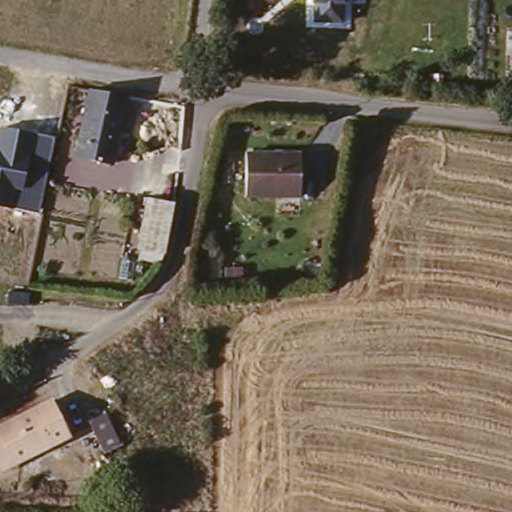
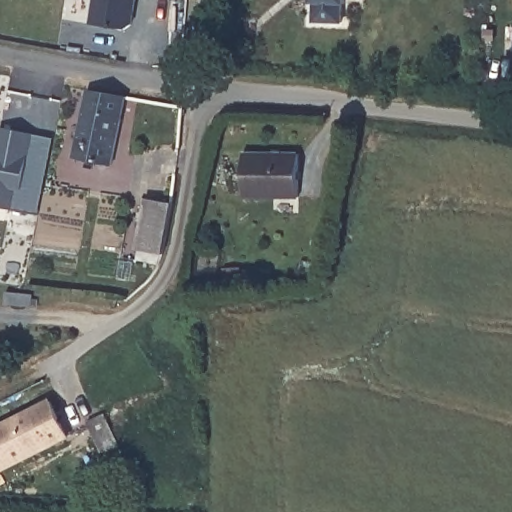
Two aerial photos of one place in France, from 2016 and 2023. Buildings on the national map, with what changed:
new [(134,24),(125,32),(91,25),(95,0),(138,0),(134,24)]
unchanged [(357,11),(355,11),(355,30),(328,28),(327,10),(325,9),(325,0),(357,0),(357,11)]
unchanged [(90,89),(130,96),(114,166),(76,156),(90,89)]
unchanged [(41,212),(0,204),(0,136),(1,127),(55,138),(41,212)]
unchanged [(300,157),(298,204),(245,198),(247,154),(300,157)]
unchanged [(131,250),(145,198),(175,206),(172,225),(166,244),(160,256),(131,250)]
unchanged [(51,398),(74,440),(0,477),(0,425),(51,398)]

